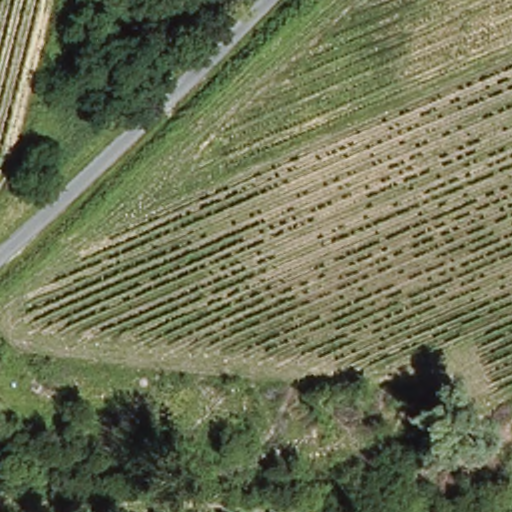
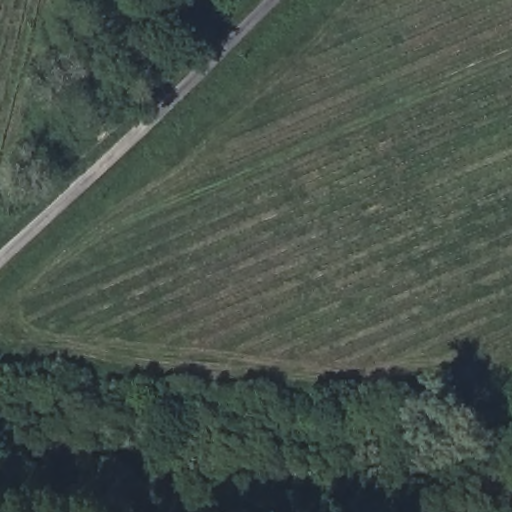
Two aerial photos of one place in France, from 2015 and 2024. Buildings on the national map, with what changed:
[]

